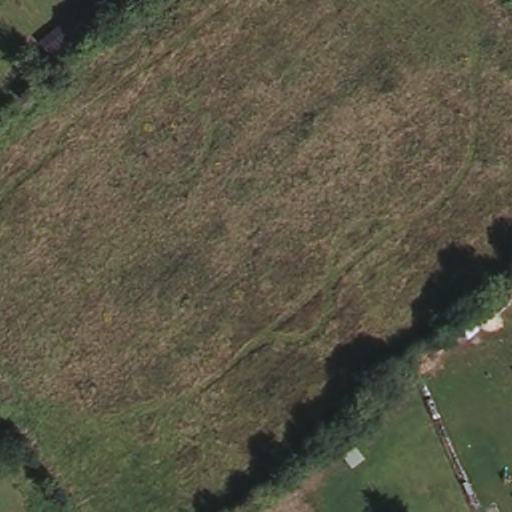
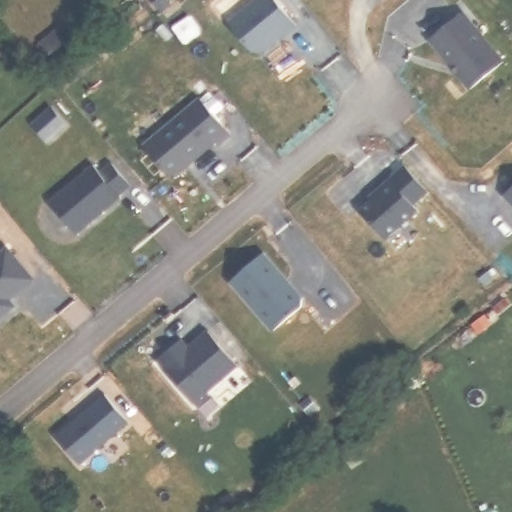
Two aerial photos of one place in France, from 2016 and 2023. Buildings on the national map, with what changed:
new [(279,0),(298,24),(286,35),(284,32),(261,51),(255,50),(231,21),(257,0),(279,0)]
new [(466,10),(507,59),(473,86),(432,37),(466,10)]
new [(207,96),(232,134),(222,144),(219,140),(177,171),(171,171),(147,142),(207,96)]
new [(95,164),(102,171),(113,161),(132,184),(121,194),(122,196),(79,233),(52,201),(95,164)]
new [(381,191),(378,188),(392,176),(420,210),(387,237),(362,208),(381,191)]
new [(512,186),(512,198),(506,191),(512,186)]
new [(34,278),(9,299),(3,303),(9,310),(0,317),(0,255),(9,247),(34,278)]
new [(262,249),(302,294),(302,301),(274,326),(230,277),(262,249)]
new [(182,337),(188,345),(207,328),(240,363),(195,402),(157,360),(182,337)]
new [(109,388),(136,420),(81,467),(54,436),(109,388)]

